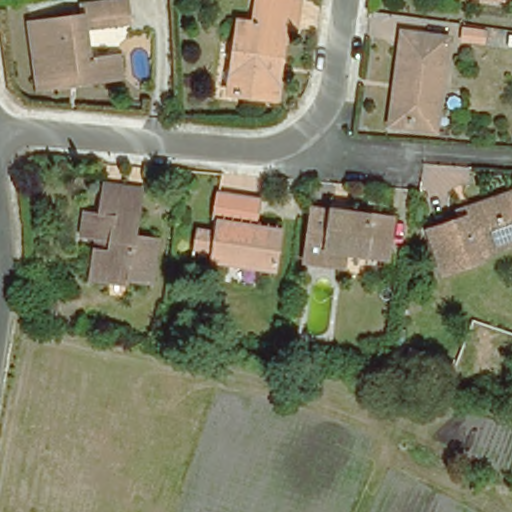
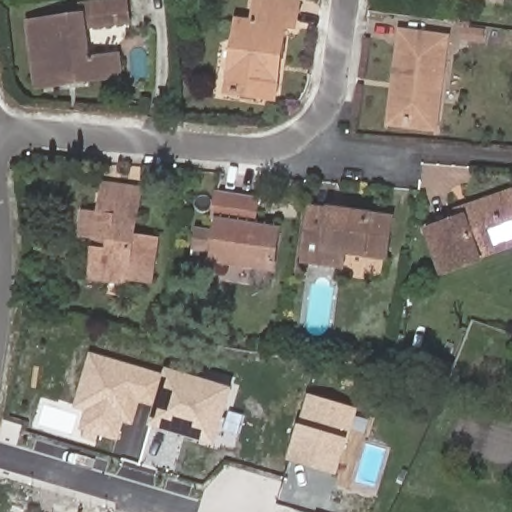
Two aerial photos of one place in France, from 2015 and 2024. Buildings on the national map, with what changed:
unchanged [(32,22),(85,15),(83,5),(123,0),(127,0),(130,21),(87,28),(91,60),(120,56),(123,79),(96,82),(40,90),(39,81),(32,22)]
unchanged [(234,25),(248,26),(252,10),(253,0),(284,0),(297,1),(295,15),(292,33),(281,31),(276,62),(272,62),(267,104),(231,99),(222,97),(226,71),(234,25)]
unchanged [(483,31),(482,43),(462,40),(463,29),(483,31)]
unchanged [(390,90),(397,39),(442,45),(431,131),(390,125),(386,125),(390,90)]
unchanged [(139,242),(162,245),(157,289),(96,281),(100,255),(106,256),(109,244),(101,242),(86,240),(89,216),(104,218),(109,190),(126,192),(146,195),(139,242)]
unchanged [(196,227),(221,231),(222,221),(212,220),(216,195),(250,200),(259,202),(256,227),(277,230),(272,270),(216,261),(217,250),(192,245),(196,227)]
unchanged [(502,195),(509,217),(512,226),(512,242),(477,254),(481,260),(443,273),(428,231),(460,219),(457,211),(471,206),(492,199),(502,195)]
unchanged [(387,258),(343,252),(341,265),(306,260),(312,212),(330,215),(331,209),(350,211),(348,215),(392,221),(387,258)]
unchanged [(21,311),(36,313),(34,330),(18,327),(21,311)]
demolished [(476,383),(440,366),(450,342),(489,357),(476,383)]
new [(167,368),(235,388),(217,447),(152,428),(156,408),(141,404),(132,425),(124,422),(118,440),(80,428),(84,412),(74,408),(91,352),(166,375),(167,368)]
new [(300,425),(302,425),(310,395),(360,410),(351,440),(340,475),(290,461),(300,425)]

